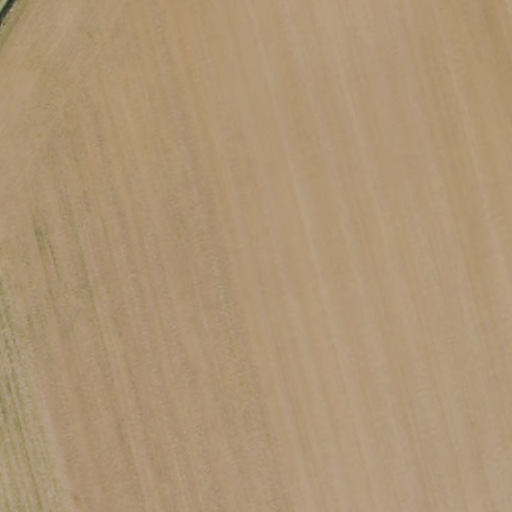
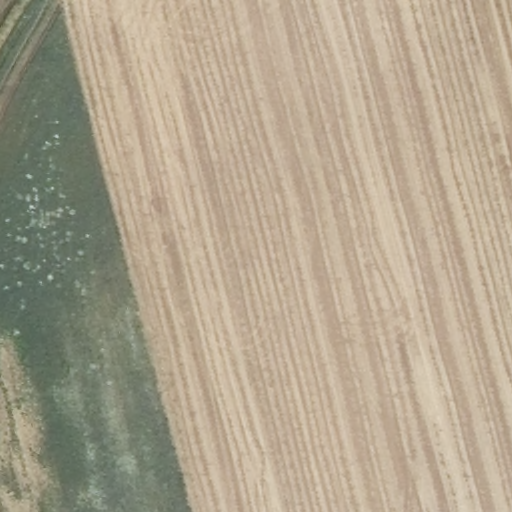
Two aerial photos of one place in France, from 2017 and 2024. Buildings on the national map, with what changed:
[]

